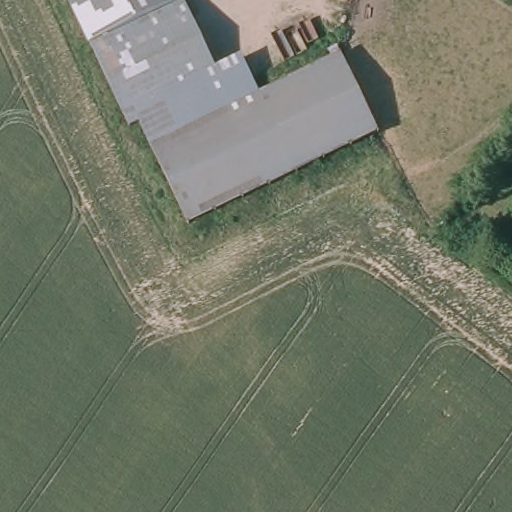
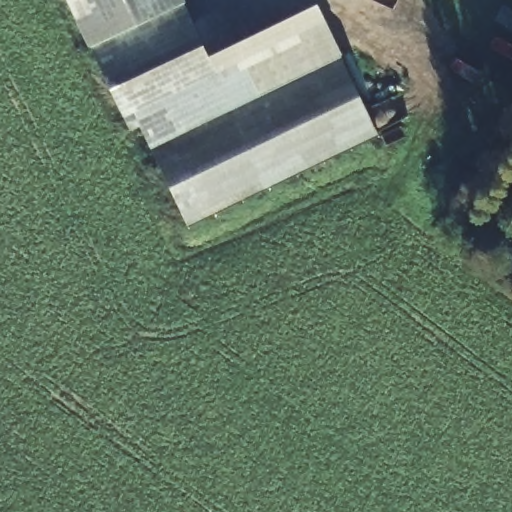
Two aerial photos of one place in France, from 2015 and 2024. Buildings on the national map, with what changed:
unchanged [(92,53),(66,0),(181,0),(185,8),(92,53)]
new [(317,4),(342,56),(339,57),(333,46),(325,50),(331,62),(262,96),(245,61),(217,74),(208,56),(317,4)]
unchanged [(185,8),(217,74),(245,61),(262,96),(152,152),(140,128),(130,133),(92,53),(185,8)]
unchanged [(331,62),(325,50),(333,46),(378,135),(337,156),(195,226),(185,219),(152,152),(262,96),(331,62)]

